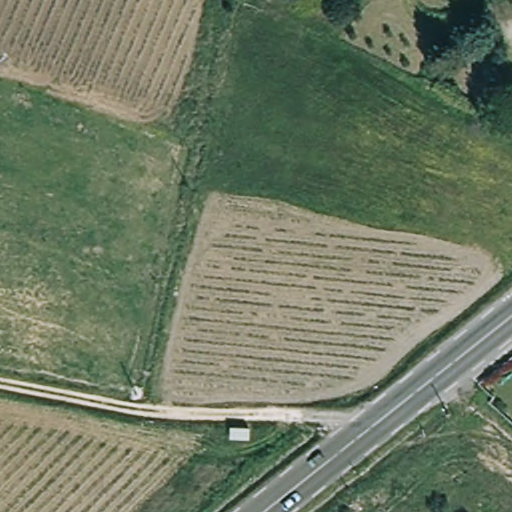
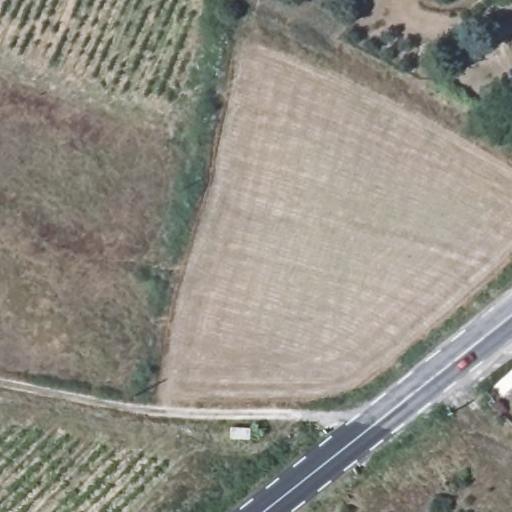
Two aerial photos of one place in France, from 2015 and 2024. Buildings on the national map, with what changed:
unchanged [(217,425),(235,426),(235,437),(217,436),(217,425)]

